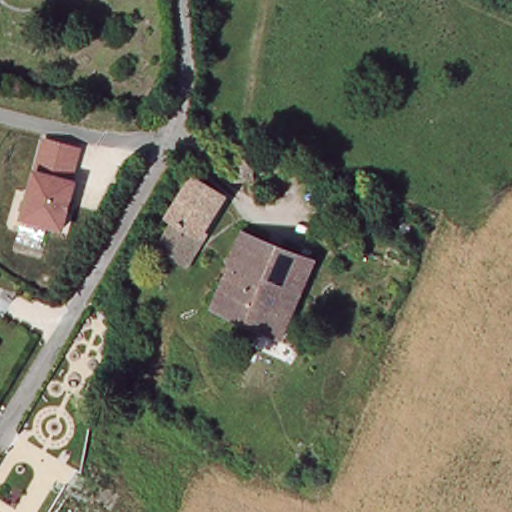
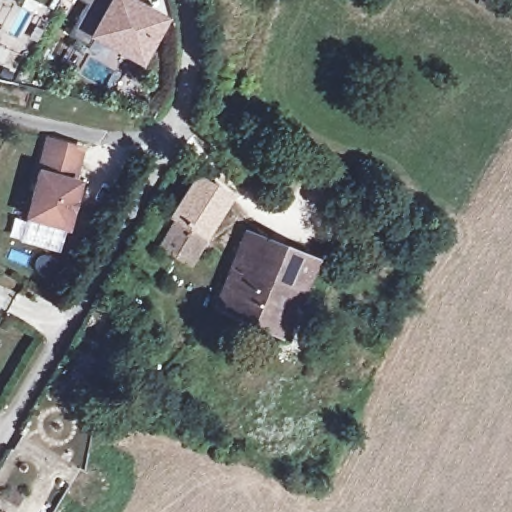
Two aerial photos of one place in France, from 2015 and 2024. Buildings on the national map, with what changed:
new [(78,0),(129,0),(164,19),(141,61),(95,36),(89,46),(71,36),(88,5),(78,0)]
unchanged [(24,221),(44,139),(84,149),(65,232),(24,221)]
unchanged [(237,153),(254,151),(257,177),(240,179),(237,153)]
unchanged [(172,218),(197,177),(229,196),(205,235),(208,236),(191,266),(161,250),(179,222),(172,218)]
unchanged [(215,309),(247,234),(316,262),(282,338),(215,309)]

